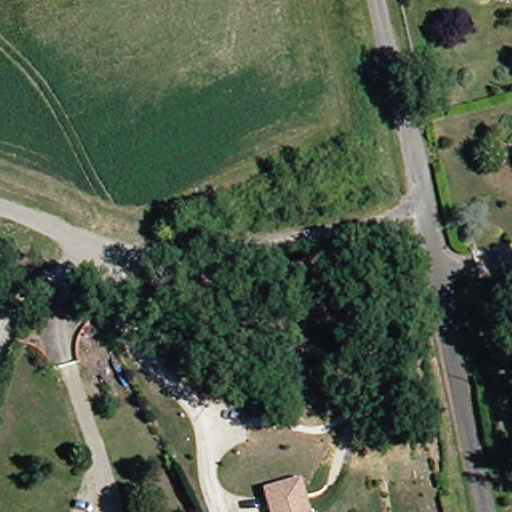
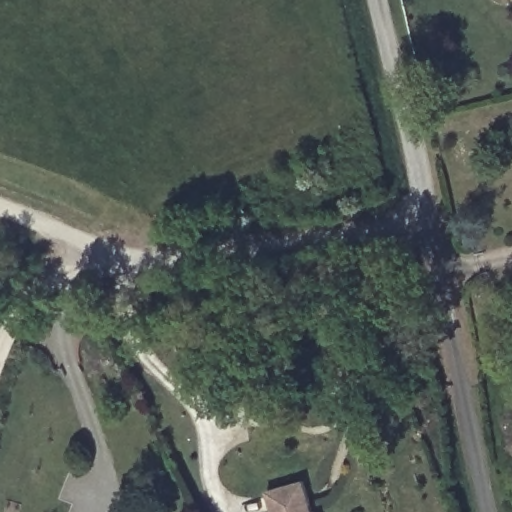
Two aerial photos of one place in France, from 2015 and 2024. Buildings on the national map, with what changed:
unchanged [(303,471),(315,510),(319,508),(320,512),(274,512),(266,482),(303,471)]

